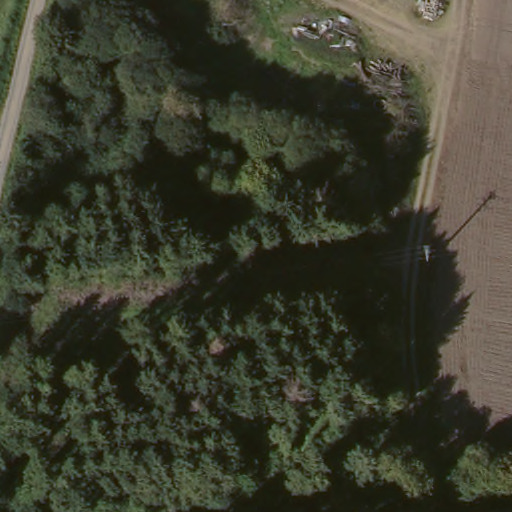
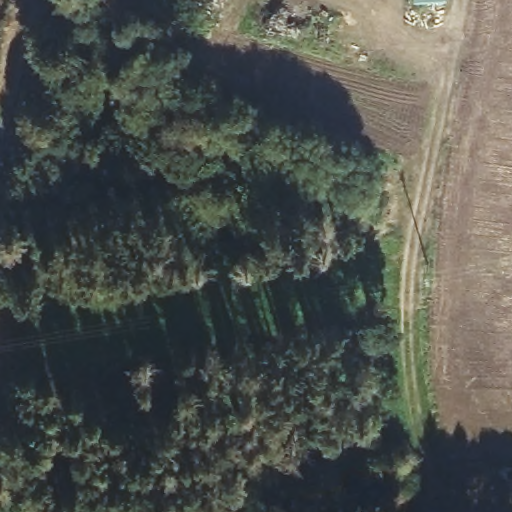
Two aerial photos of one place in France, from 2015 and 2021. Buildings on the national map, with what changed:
unchanged [(446,1),(426,0),(446,0),(446,1)]

